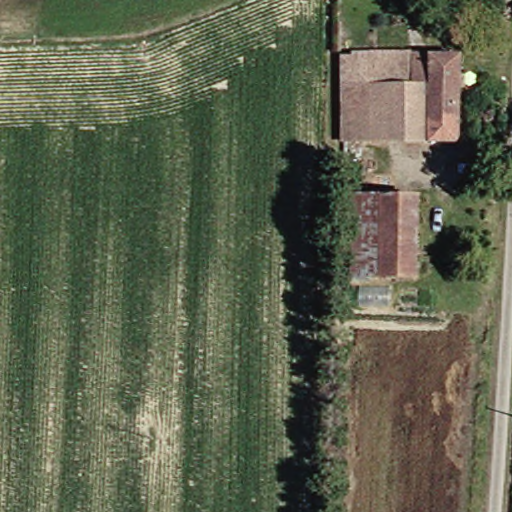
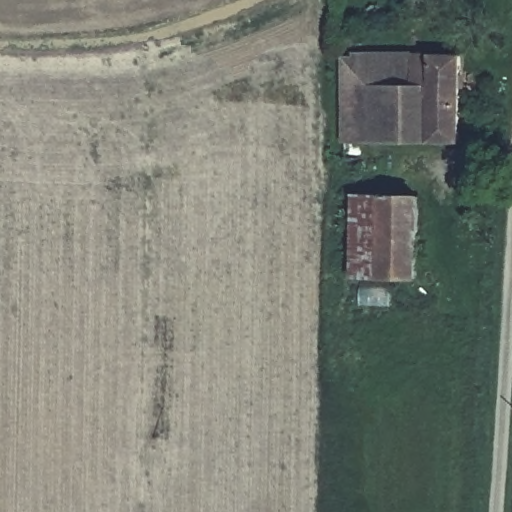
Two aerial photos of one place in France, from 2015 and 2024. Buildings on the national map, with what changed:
unchanged [(423,68),(424,58),(459,59),(454,142),(365,140),(364,65),(423,68)]
unchanged [(364,65),(365,140),(337,141),(339,65),(356,64),(364,65)]
unchanged [(344,274),(346,199),(346,194),(411,194),(411,201),(409,274),(344,274)]

